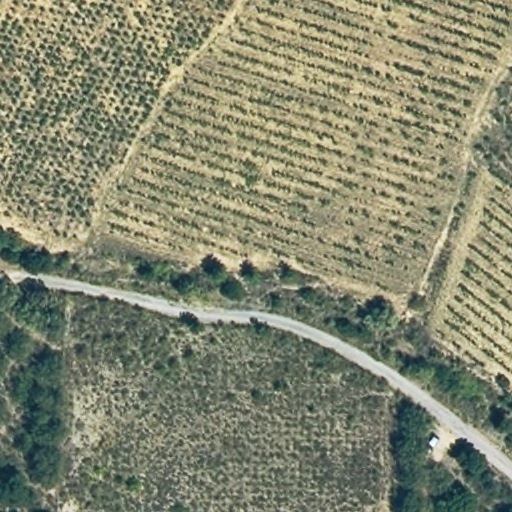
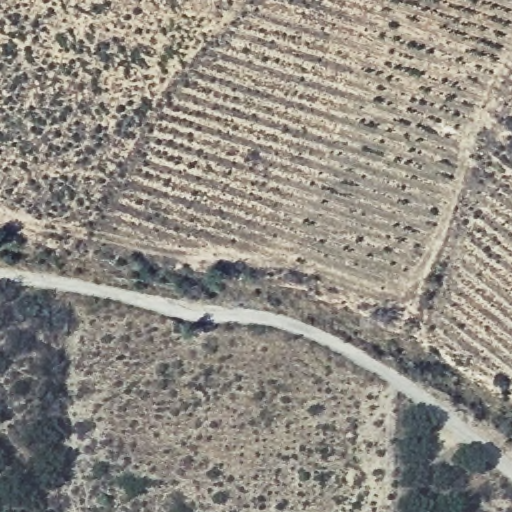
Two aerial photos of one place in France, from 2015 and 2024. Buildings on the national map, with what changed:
unchanged [(207,293),(204,309),(183,303),(187,288),(207,293)]

